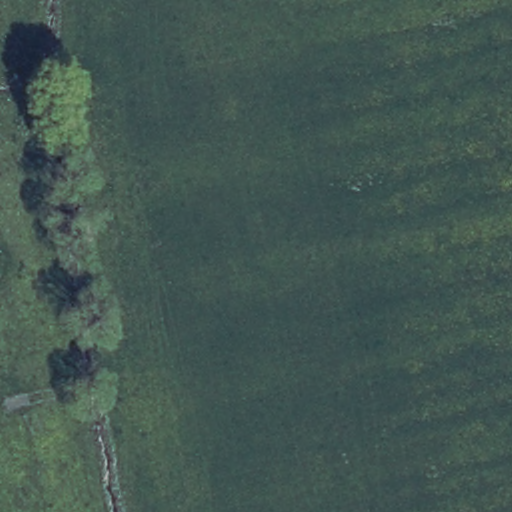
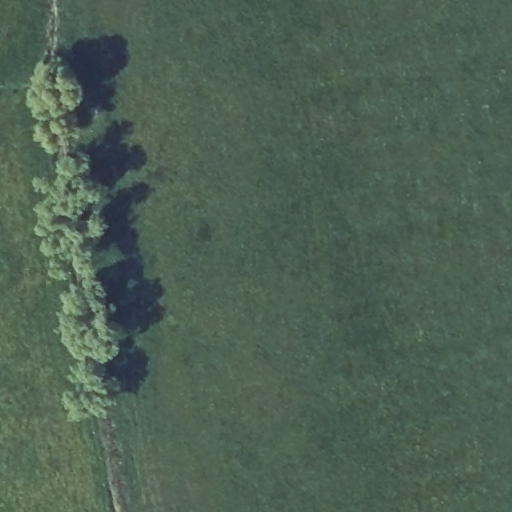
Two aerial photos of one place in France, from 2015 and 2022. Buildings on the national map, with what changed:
[]

